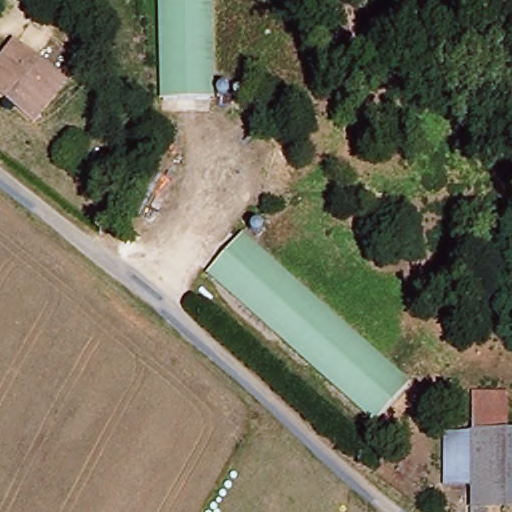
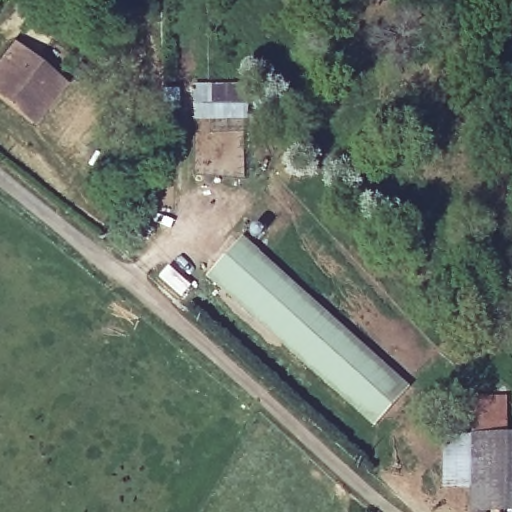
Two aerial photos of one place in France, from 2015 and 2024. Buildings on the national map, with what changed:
demolished [(209,105),(161,107),(157,0),(205,0),(209,105)]
unchanged [(0,60),(13,44),(63,86),(39,116),(32,126),(0,99),(0,60)]
new [(194,85),(247,85),(248,105),(248,121),(192,122),(193,105),(194,85)]
unchanged [(374,431),(208,278),(239,244),(406,396),(374,431)]
unchanged [(475,390),(512,391),(511,426),(475,426),(475,390)]
unchanged [(447,494),(448,443),(474,443),(475,426),(511,426),(512,426),(512,512),(475,512),(475,493),(447,494)]

